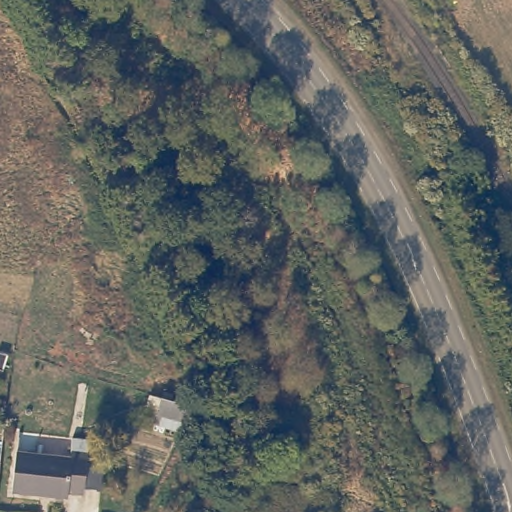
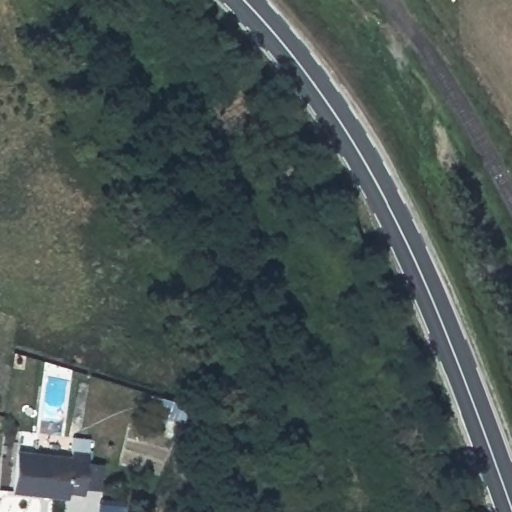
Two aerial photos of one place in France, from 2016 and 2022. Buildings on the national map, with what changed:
unchanged [(192,412),(184,429),(154,419),(159,402),(192,412)]
unchanged [(97,483),(82,481),(81,488),(65,487),(64,491),(10,487),(13,447),(68,452),(70,430),(88,432),(85,457),(100,459),(97,483)]

